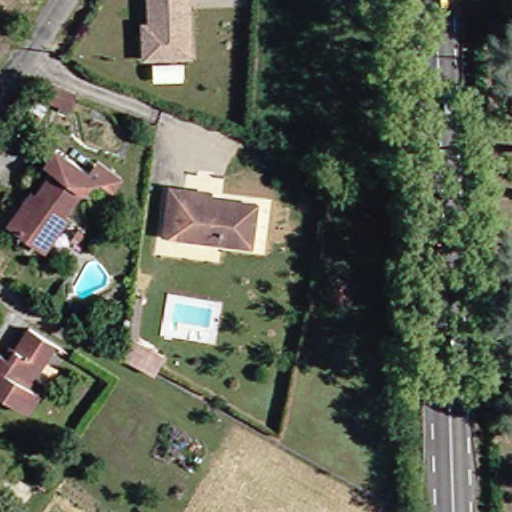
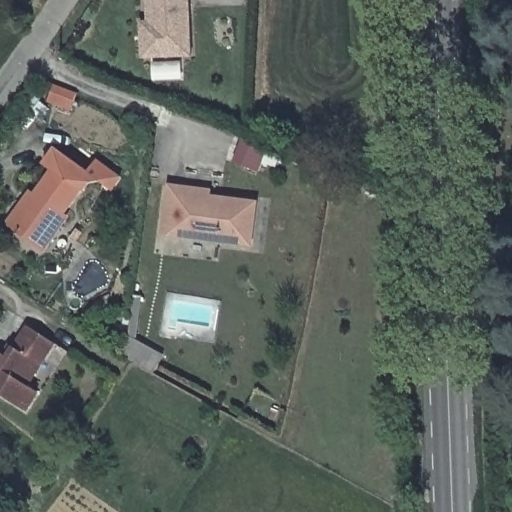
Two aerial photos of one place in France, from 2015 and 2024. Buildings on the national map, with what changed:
unchanged [(142,0),(184,0),(189,55),(138,59),(137,37),(135,22),(143,22),(142,0)]
unchanged [(79,87),(73,105),(46,98),(53,77),(79,87)]
unchanged [(60,219),(37,252),(0,227),(0,226),(35,169),(27,162),(42,140),(64,154),(76,137),(106,156),(95,173),(86,171),(56,212),(60,219)]
unchanged [(160,232),(166,182),(183,183),(212,185),(212,196),(258,201),(252,243),(160,232)]
unchanged [(0,400),(0,360),(19,331),(44,345),(22,381),(38,388),(23,413),(0,400)]
unchanged [(123,353),(127,341),(152,355),(147,368),(123,353)]

